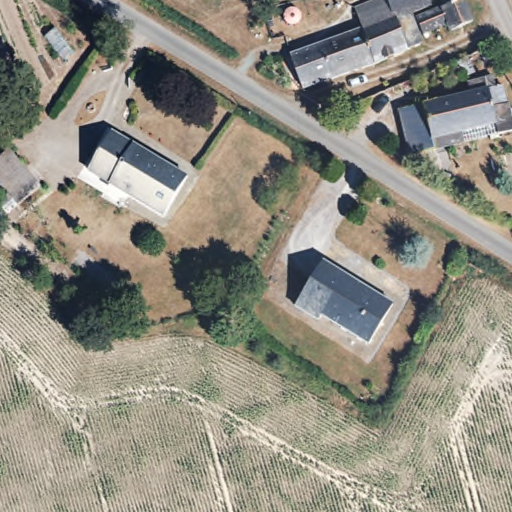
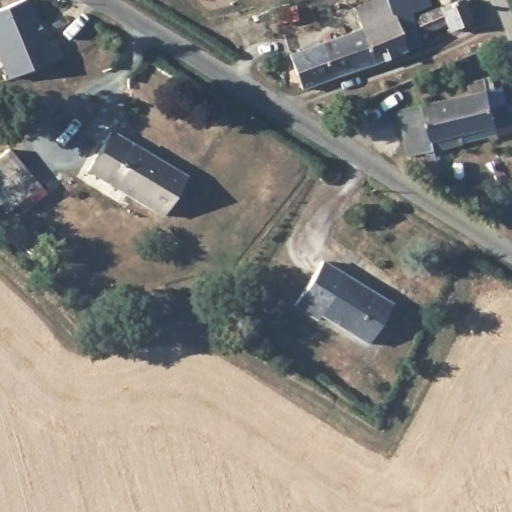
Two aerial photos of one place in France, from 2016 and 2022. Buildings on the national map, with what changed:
new [(21,0),(28,0),(46,43),(51,41),(59,58),(6,79),(0,64),(0,9),(21,0)]
unchanged [(375,0),(416,0),(418,6),(399,13),(411,48),(360,66),(349,33),(341,12),(353,8),(375,0)]
unchanged [(443,8),(440,0),(461,0),(476,23),(430,42),(420,45),(411,22),(443,8)]
unchanged [(349,33),(360,66),(290,90),(282,56),(349,33)]
unchanged [(463,92),(459,80),(475,76),(482,99),(499,94),(508,124),(489,130),(486,121),(426,139),(429,147),(404,154),(392,111),(463,92)]
unchanged [(181,180),(159,217),(85,174),(107,137),(181,180)]
unchanged [(37,190),(15,210),(0,192),(0,160),(6,155),(37,190)]
unchanged [(392,307),(366,346),(319,315),(316,320),(295,306),(324,263),(392,307)]

